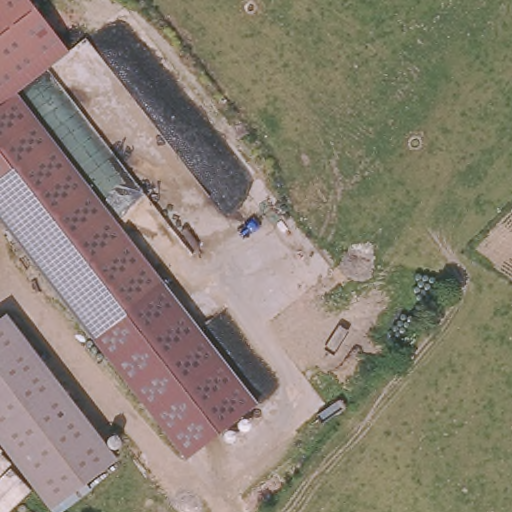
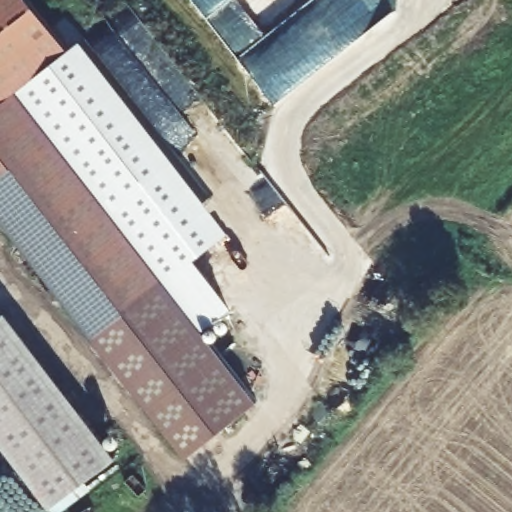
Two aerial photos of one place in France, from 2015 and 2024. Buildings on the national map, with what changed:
unchanged [(27,85),(95,174),(98,177),(100,180),(87,190),(85,187),(82,183),(81,184),(22,228),(0,199),(0,0),(37,0),(74,48),(27,85)]
new [(82,42),(229,232),(195,258),(232,307),(200,335),(162,288),(87,190),(100,180),(98,177),(95,174),(27,85),(74,48),(82,42)]
unchanged [(17,245),(13,241),(10,237),(21,229),(22,228),(81,184),(82,183),(85,187),(87,190),(162,288),(91,342),(17,245)]
unchanged [(256,402),(185,458),(91,342),(162,288),(256,402)]
unchanged [(55,512),(42,512),(0,456),(0,330),(5,326),(53,391),(112,469),(55,512)]

